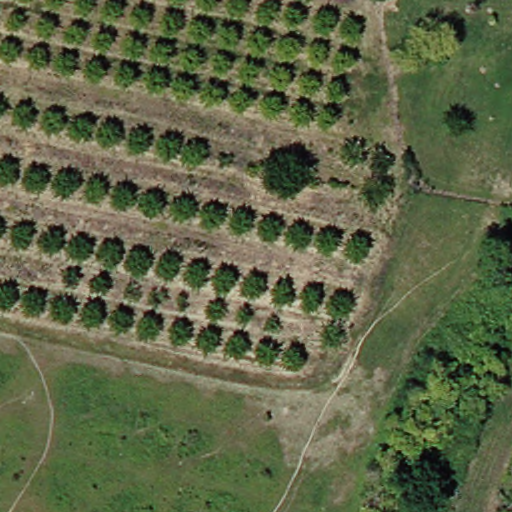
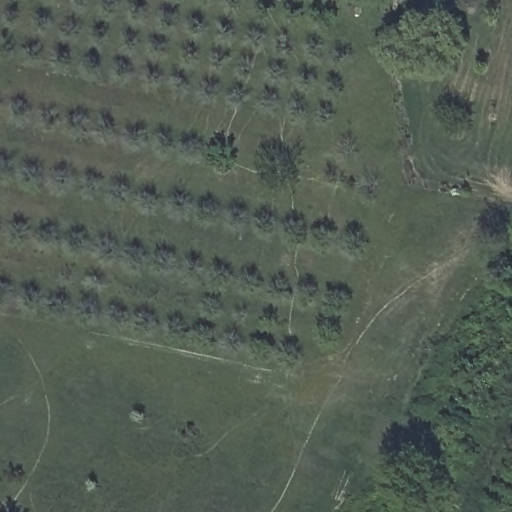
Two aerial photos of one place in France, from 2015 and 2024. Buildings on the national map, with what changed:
[]

